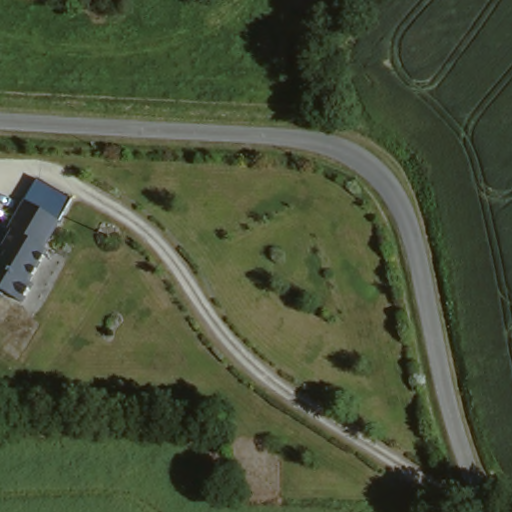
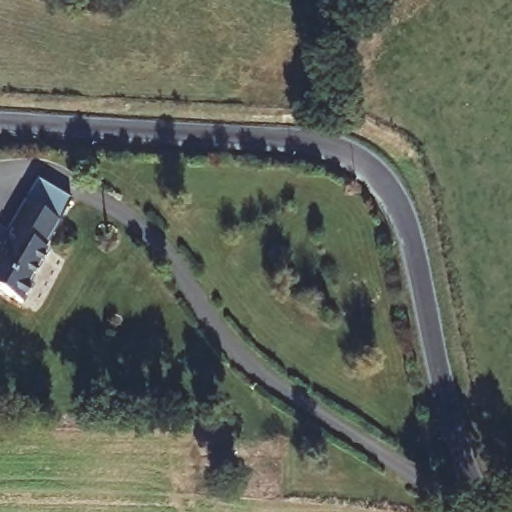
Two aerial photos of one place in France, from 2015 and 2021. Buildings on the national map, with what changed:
unchanged [(0,288),(0,251),(12,230),(8,228),(24,198),(59,218),(43,246),(48,249),(30,281),(35,283),(24,301),(0,288)]

